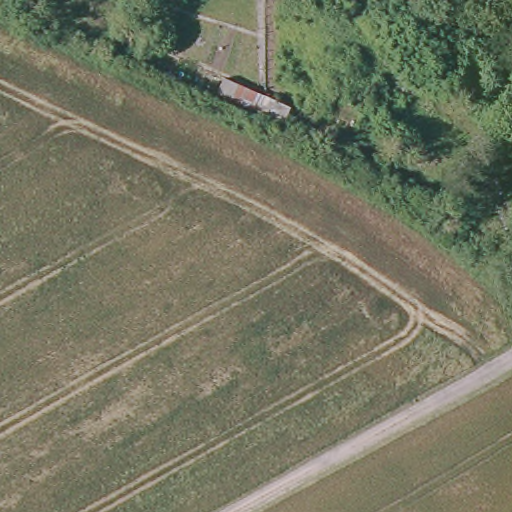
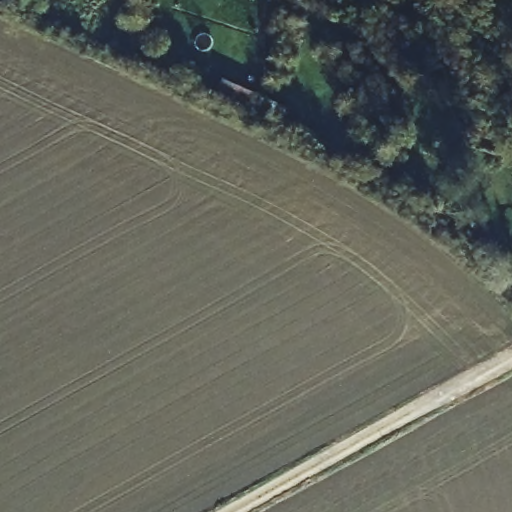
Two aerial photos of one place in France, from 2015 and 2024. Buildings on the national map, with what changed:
unchanged [(228,96),(235,83),(259,94),(274,101),(268,116),(259,113),(228,96)]
unchanged [(452,181),(468,187),(461,201),(446,194),(452,181)]

